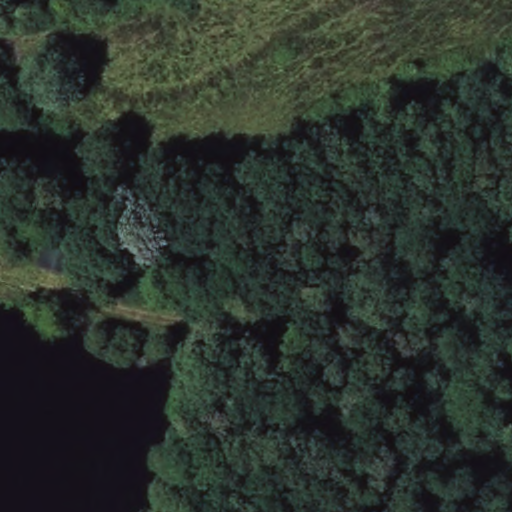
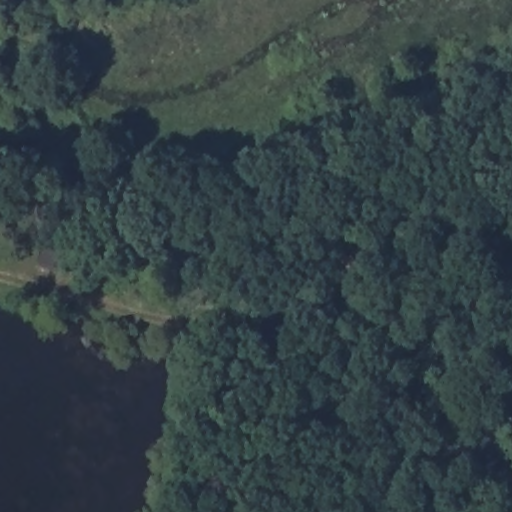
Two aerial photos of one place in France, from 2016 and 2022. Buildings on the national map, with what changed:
unchanged [(46,241),(77,249),(70,272),(40,264),(46,241)]

